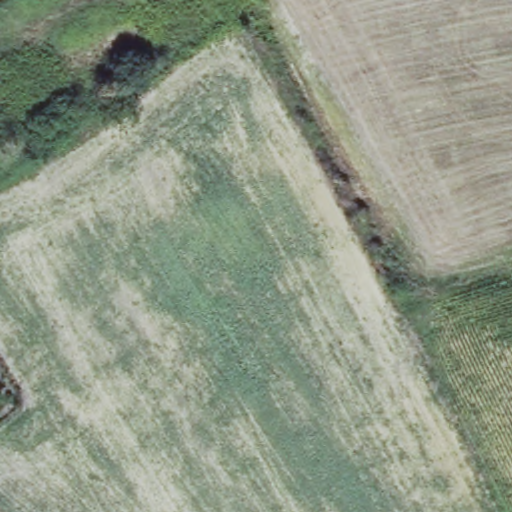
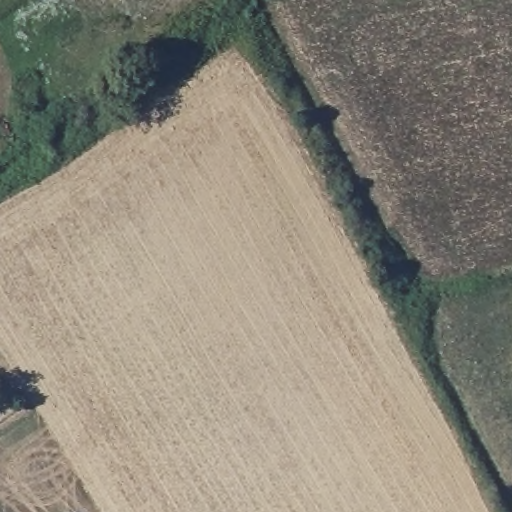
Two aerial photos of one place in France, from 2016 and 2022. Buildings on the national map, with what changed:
[]

